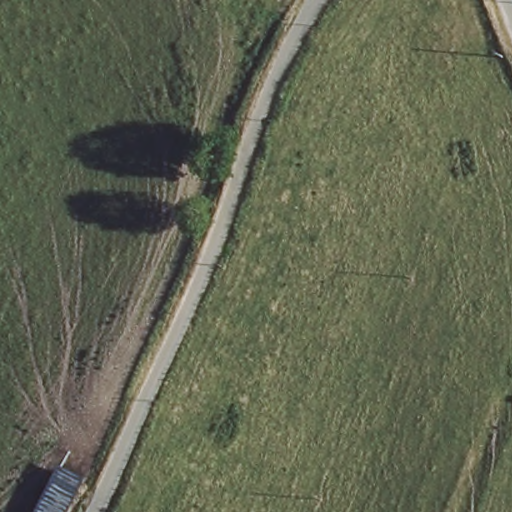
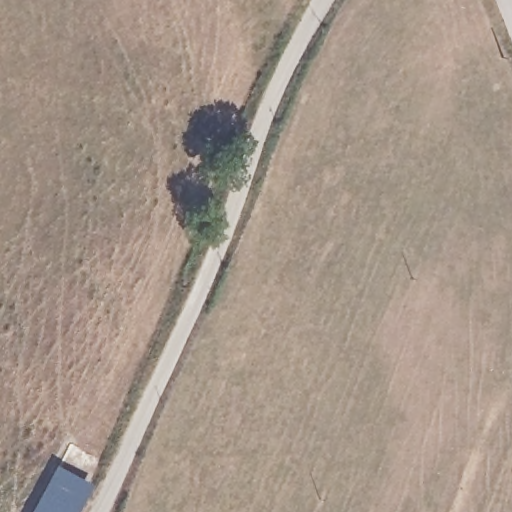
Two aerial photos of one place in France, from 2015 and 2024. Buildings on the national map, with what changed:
new [(77,512),(31,512),(55,466),(92,485),(77,512)]

